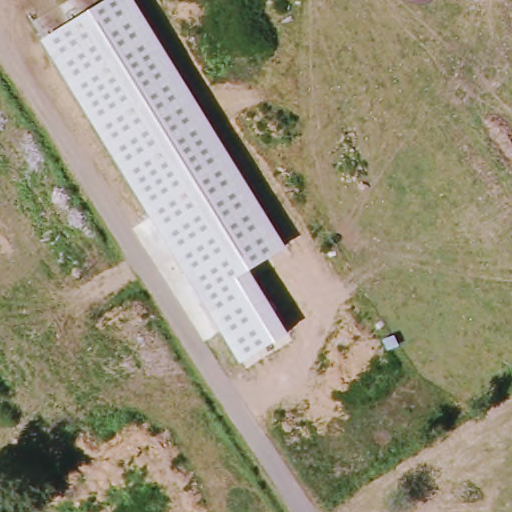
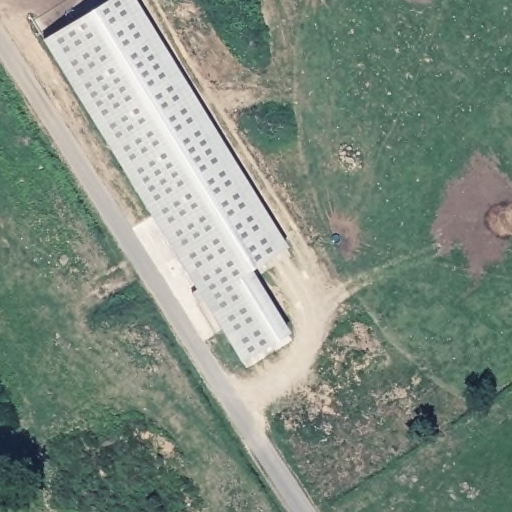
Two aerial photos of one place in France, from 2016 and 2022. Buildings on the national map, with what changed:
unchanged [(135,0),(287,247),(250,267),(289,332),(242,362),(42,39),(106,0),(135,0)]

